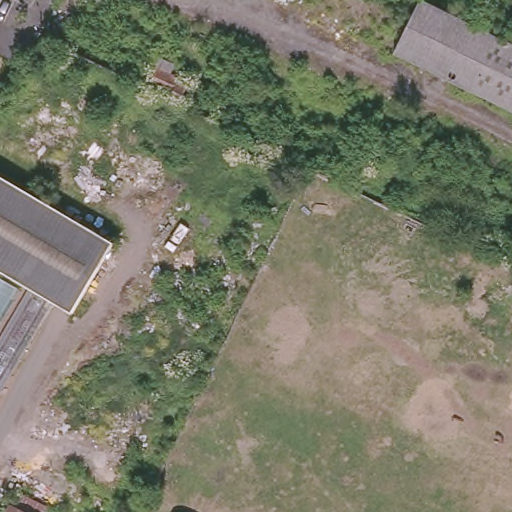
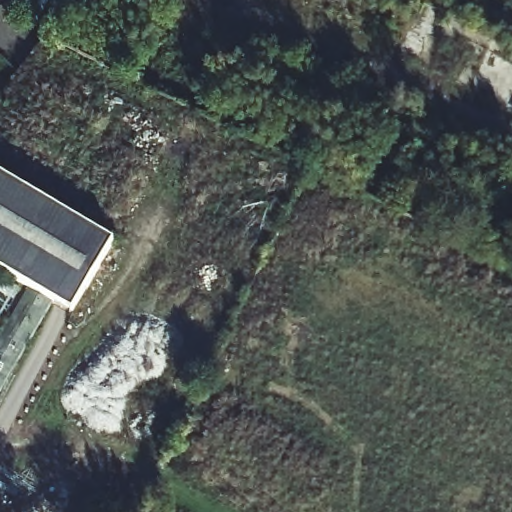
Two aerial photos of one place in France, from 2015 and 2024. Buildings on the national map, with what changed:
demolished [(512,44),(512,112),(394,54),(421,0),(512,44)]
unchanged [(169,62),(165,71),(186,82),(177,98),(143,81),(155,55),(169,62)]
unchanged [(73,313),(0,271),(0,175),(115,242),(73,313)]
unchanged [(0,391),(0,271),(52,300),(0,391)]
demolished [(21,512),(5,512),(8,505),(21,512)]

